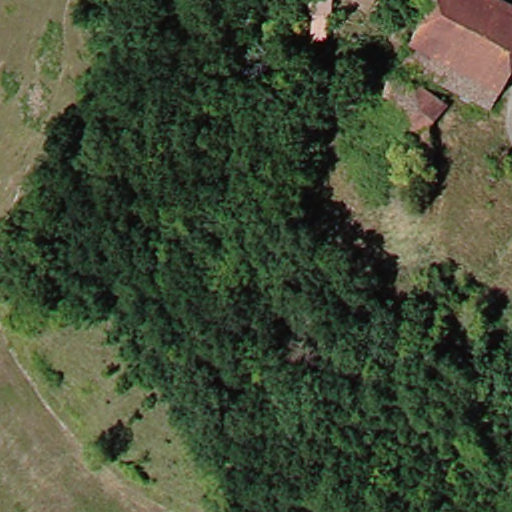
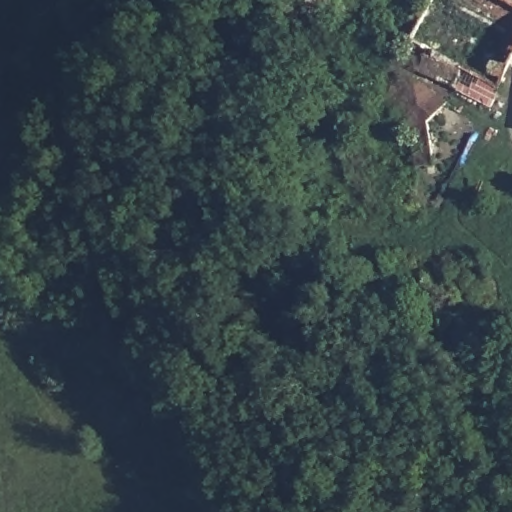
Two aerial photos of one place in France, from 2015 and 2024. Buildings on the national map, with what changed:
unchanged [(443,81),(411,63),(425,31),(421,30),(434,0),(512,0),(512,73),(510,76),(502,93),(450,68),(443,81)]
unchanged [(458,102),(437,122),(440,159),(396,106),(410,74),(458,102)]

